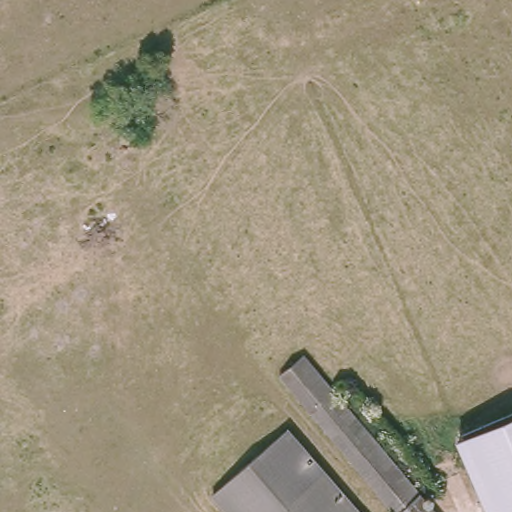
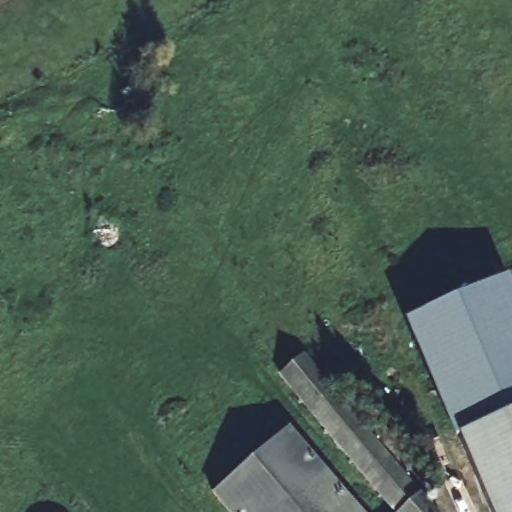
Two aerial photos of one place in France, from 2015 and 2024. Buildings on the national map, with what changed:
new [(456,439),(404,321),(507,277),(512,288),(512,415),(459,438),(456,439)]
unchanged [(312,345),(451,512),(391,512),(277,372),(312,345)]
unchanged [(512,415),(512,512),(490,512),(459,438),(512,415)]
unchanged [(289,422),(367,512),(225,512),(208,493),(289,422)]

